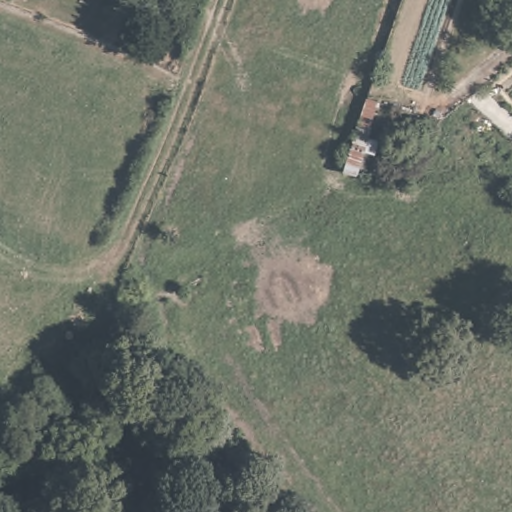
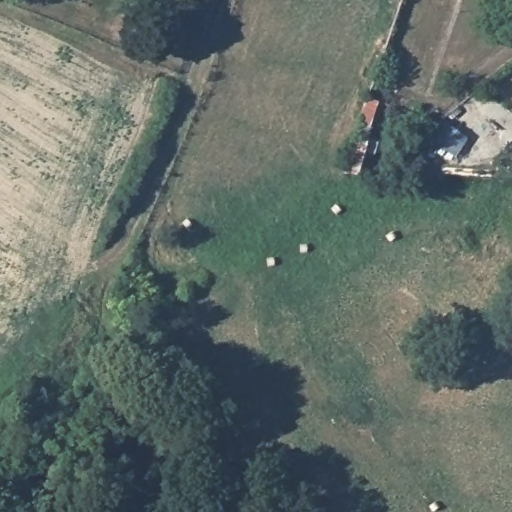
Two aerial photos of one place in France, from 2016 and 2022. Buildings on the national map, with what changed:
unchanged [(341,173),(364,97),(379,101),(356,173),(341,173)]

